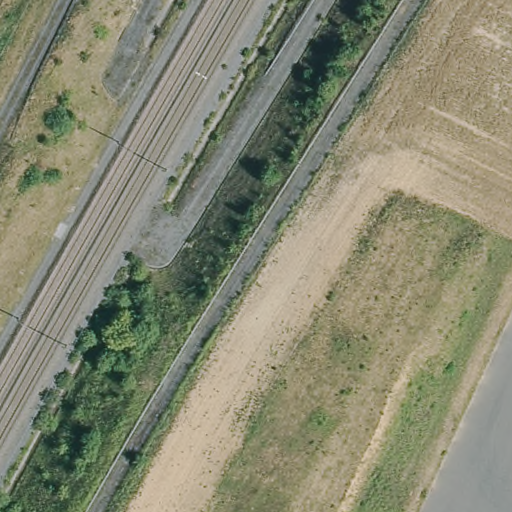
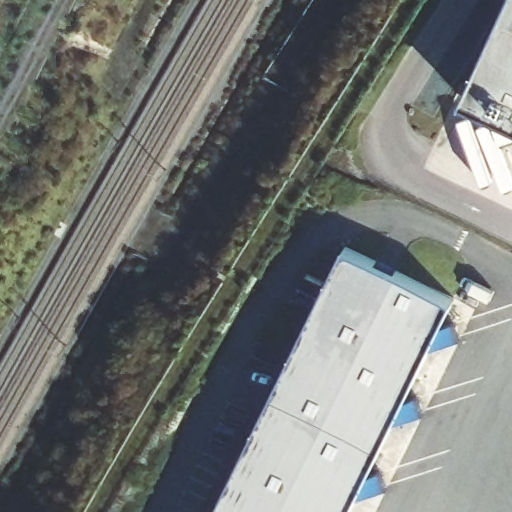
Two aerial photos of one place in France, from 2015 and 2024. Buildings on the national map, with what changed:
new [(509,0),(512,0),(512,122),(464,100),(509,0)]
new [(453,302),(350,512),(215,512),(345,248),(453,302)]

